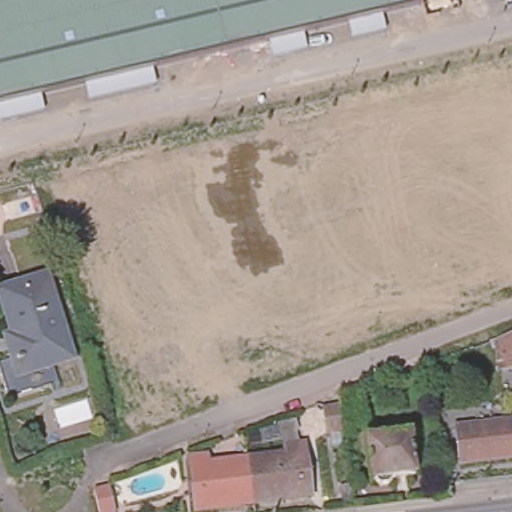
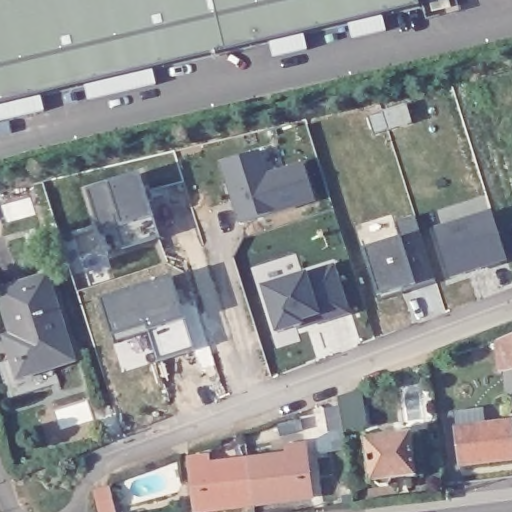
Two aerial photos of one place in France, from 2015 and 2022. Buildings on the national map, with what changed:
unchanged [(384,14),(388,32),(353,40),(348,23),(305,33),(309,50),(271,60),(267,41),(154,69),(157,86),(89,101),(84,85),(40,95),(45,114),(0,125),(0,0),(418,0),(419,5),(384,14)]
new [(221,162),(261,150),(268,173),(304,162),(314,200),(239,222),(221,162)]
new [(98,225),(88,192),(140,176),(159,239),(122,250),(116,230),(100,235),(98,225)]
new [(474,220),(493,215),(508,260),(452,278),(437,232),(474,220)]
new [(399,240),(395,225),(416,218),(437,283),(416,290),(415,286),(402,290),(403,295),(380,302),(364,251),(399,240)]
new [(301,326),(276,334),(263,289),(333,267),(348,315),(320,323),(302,329),(301,326)]
new [(172,280),(194,351),(123,373),(100,302),(172,280)]
unchanged [(73,366),(16,378),(9,349),(16,347),(4,292),(53,281),(73,366)]
unchanged [(496,341),(512,335),(512,368),(499,370),(496,341)]
unchanged [(326,433),(323,408),(340,406),(339,398),(359,391),(364,428),(344,431),(343,431),(326,433)]
unchanged [(512,422),(512,427),(512,457),(460,463),(456,428),(512,422)]
unchanged [(409,436),(414,477),(392,481),(389,487),(379,488),(376,482),(372,482),(367,442),(409,436)]
unchanged [(286,460),(286,452),(303,450),(311,502),(251,510),(246,465),(286,460)]
unchanged [(237,512),(195,512),(188,465),(206,463),(208,471),(246,465),(251,510),(237,512)]
unchanged [(112,512),(96,512),(93,492),(109,490),(112,512)]

